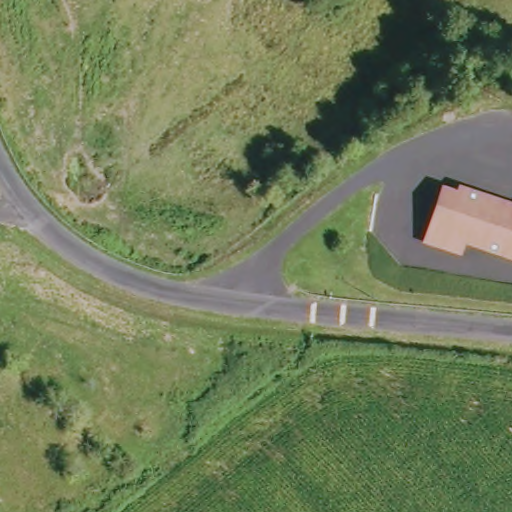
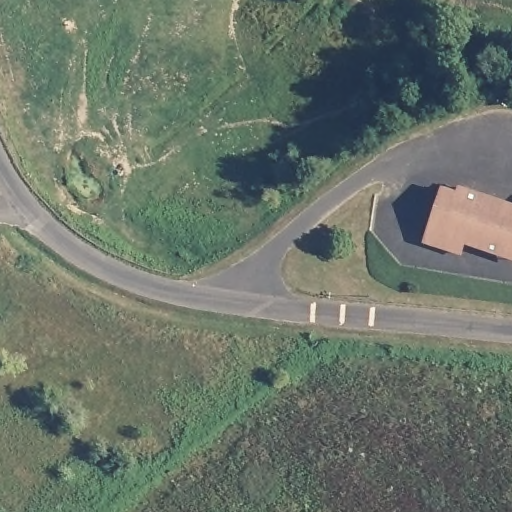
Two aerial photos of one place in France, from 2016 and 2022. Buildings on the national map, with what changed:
unchanged [(468,241),(465,251),(429,238),(447,186),(462,192),(465,184),(512,201),(512,256),(506,254),(468,241)]

